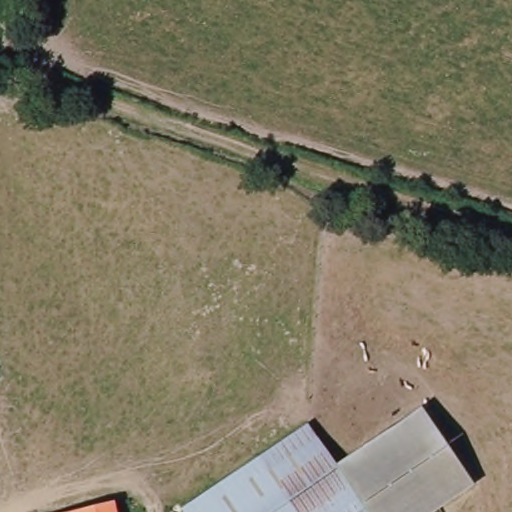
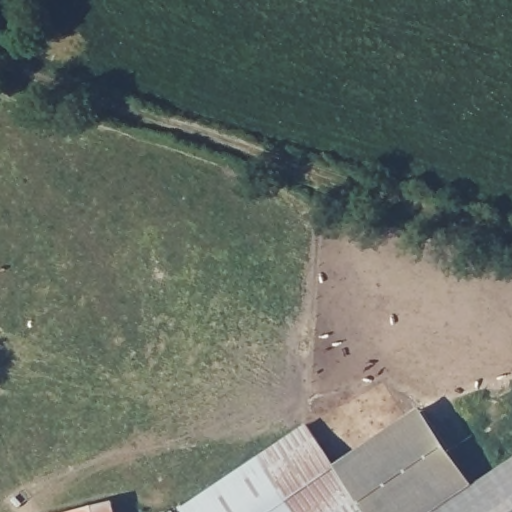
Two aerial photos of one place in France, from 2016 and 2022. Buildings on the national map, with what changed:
unchanged [(337,464),(423,406),(474,482),(429,512),(369,512),(352,487),(337,464)]
unchanged [(309,423),(312,427),(337,464),(352,487),(316,512),(187,512),(184,507),(309,423)]
new [(512,459),(512,512),(437,512),(512,459)]
unchanged [(352,487),(369,512),(316,512),(352,487)]
unchanged [(117,497),(121,512),(63,512),(117,497)]

